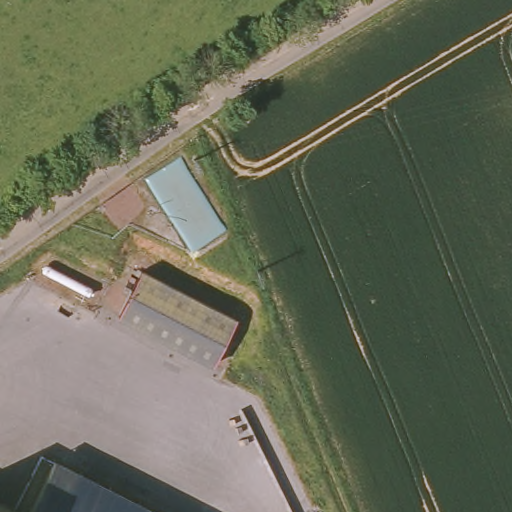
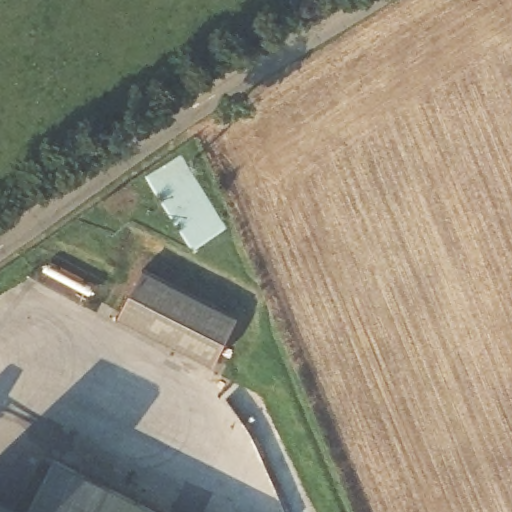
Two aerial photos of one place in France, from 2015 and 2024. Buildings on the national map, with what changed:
unchanged [(148,272),(241,320),(218,364),(124,316),(148,272)]
unchanged [(54,455),(169,512),(25,512),(54,455)]
unchanged [(0,500),(24,512),(0,512),(0,500)]

